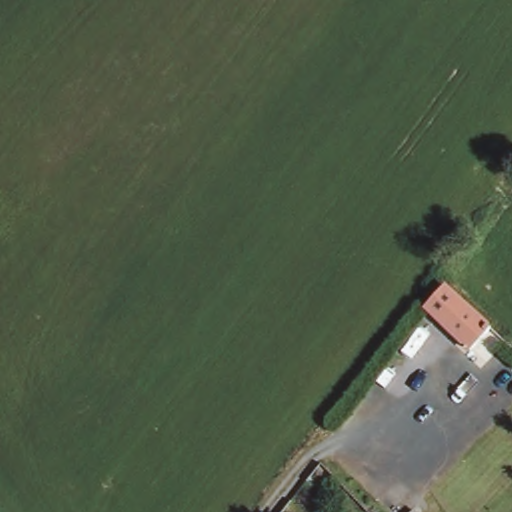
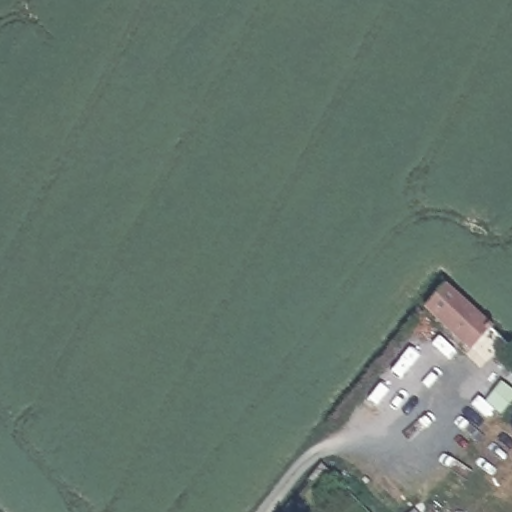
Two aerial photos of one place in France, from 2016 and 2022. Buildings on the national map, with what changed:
unchanged [(445,284),(490,326),(472,348),(426,304),(445,284)]

